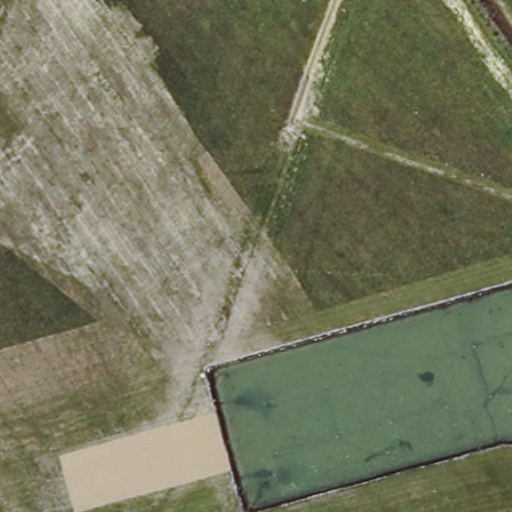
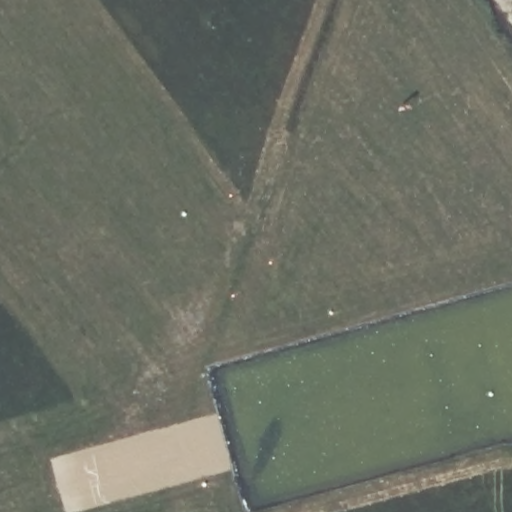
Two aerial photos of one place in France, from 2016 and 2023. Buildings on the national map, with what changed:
[]

